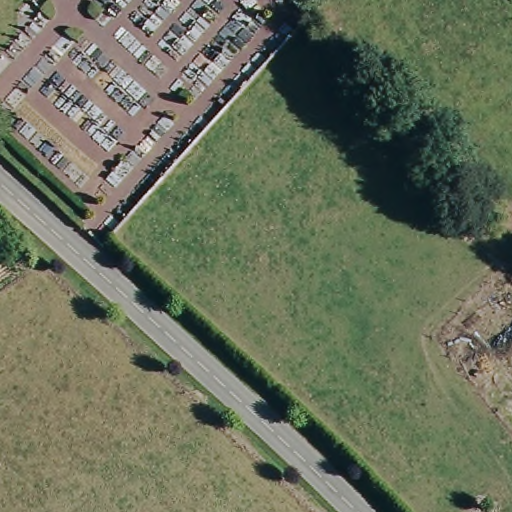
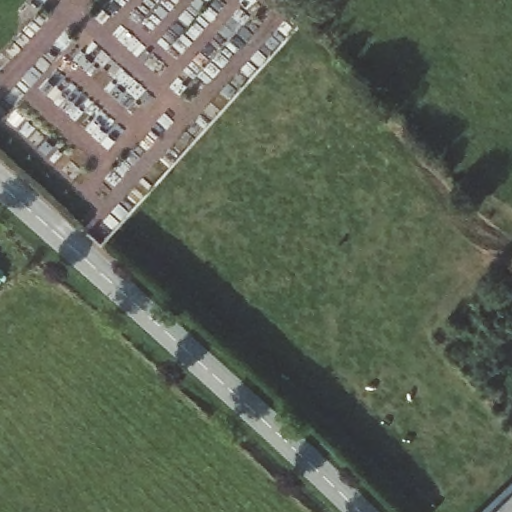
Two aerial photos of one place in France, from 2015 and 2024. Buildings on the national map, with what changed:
new [(512,487),(512,512),(487,512),(512,487)]

